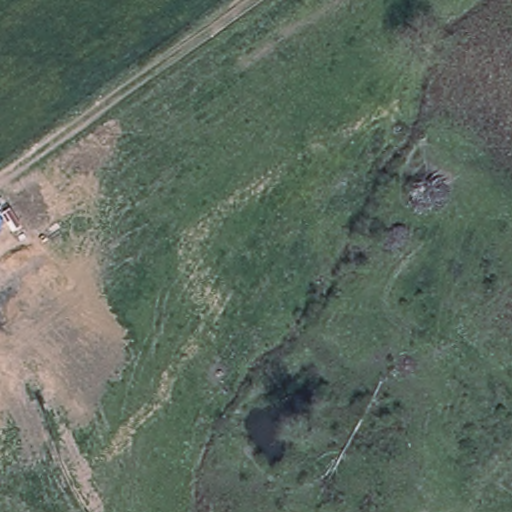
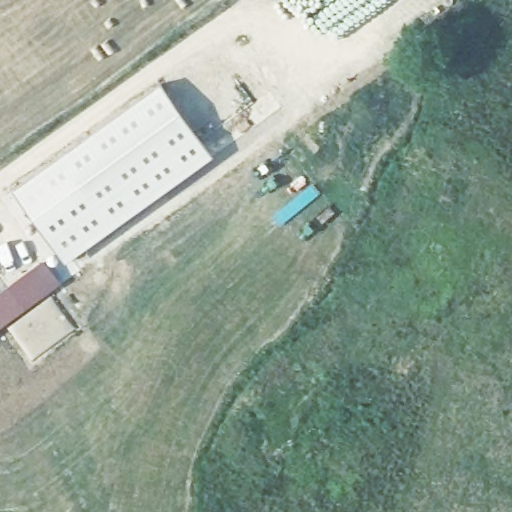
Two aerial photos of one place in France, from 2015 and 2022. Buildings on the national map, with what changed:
new [(160,85),(214,160),(66,268),(12,194),(160,85)]
new [(45,260),(61,283),(25,311),(0,327),(0,292),(8,287),(45,260)]

